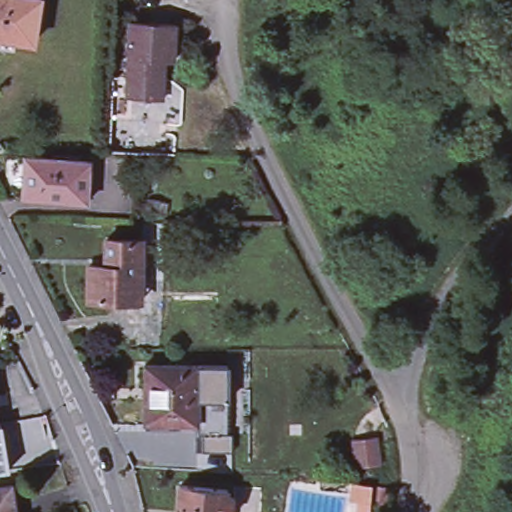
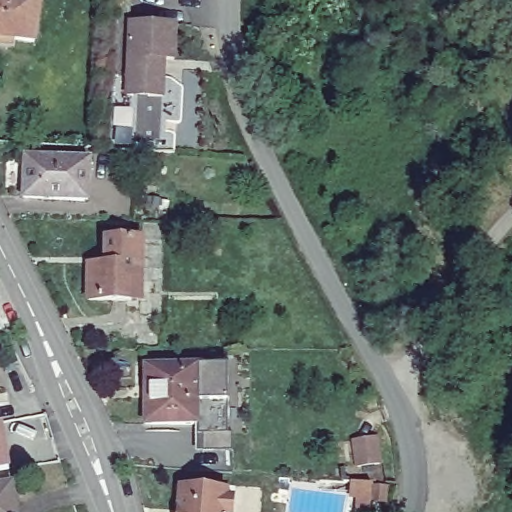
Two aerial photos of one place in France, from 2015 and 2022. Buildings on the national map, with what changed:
unchanged [(32,43),(0,38),(0,0),(40,0),(32,43)]
unchanged [(172,25),(171,59),(160,59),(158,96),(125,94),(127,23),(172,25)]
unchanged [(89,161),(86,201),(21,197),(23,157),(89,161)]
unchanged [(136,295),(92,295),(93,259),(115,259),(115,250),(109,250),(109,234),(147,235),(147,251),(146,276),(145,296),(136,295)]
unchanged [(165,440),(165,425),(145,425),(145,359),(196,360),(196,426),(196,441),(165,440)]
unchanged [(355,437),(380,437),(380,461),(355,461),(355,437)]
unchanged [(3,465),(0,466),(0,445),(3,465)]
unchanged [(378,485),(377,500),(360,499),(361,484),(378,485)]
unchanged [(15,512),(0,512),(0,486),(11,485),(15,512)]
unchanged [(227,490),(227,512),(179,512),(180,485),(227,490)]

